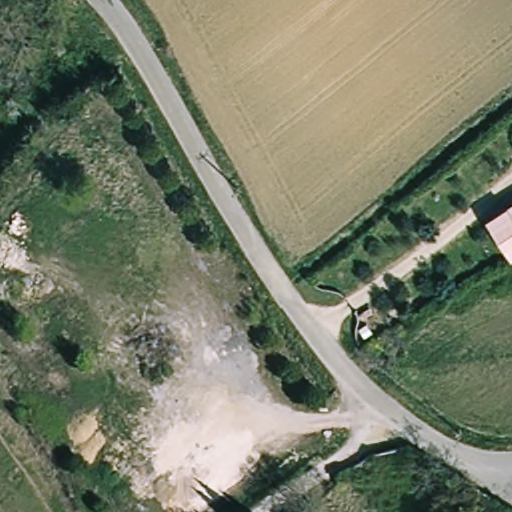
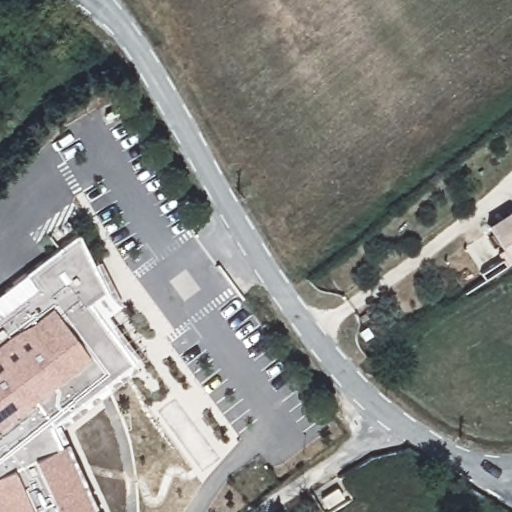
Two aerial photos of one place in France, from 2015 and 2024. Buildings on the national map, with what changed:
unchanged [(512,206),(512,263),(486,222),(507,210),(512,206)]
new [(93,263),(99,260),(120,302),(106,313),(137,356),(131,360),(137,368),(58,426),(97,512),(0,512),(0,288),(77,232),(93,263)]

